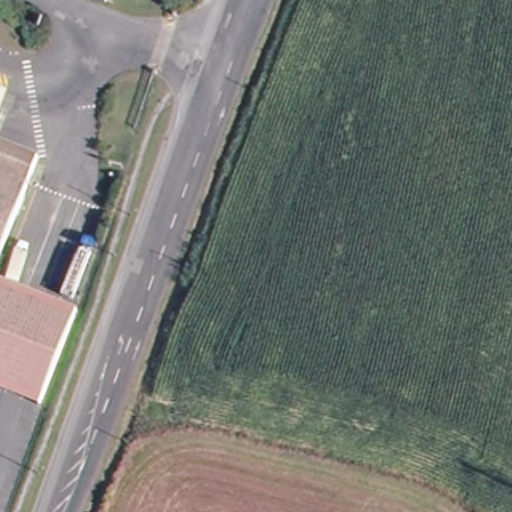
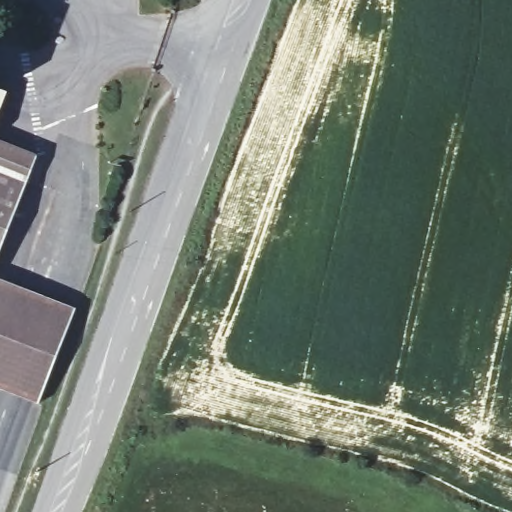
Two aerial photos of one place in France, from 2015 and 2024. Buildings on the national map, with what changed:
unchanged [(0,241),(0,132),(34,142),(0,241)]
unchanged [(40,389),(0,375),(0,268),(73,293),(40,389)]

